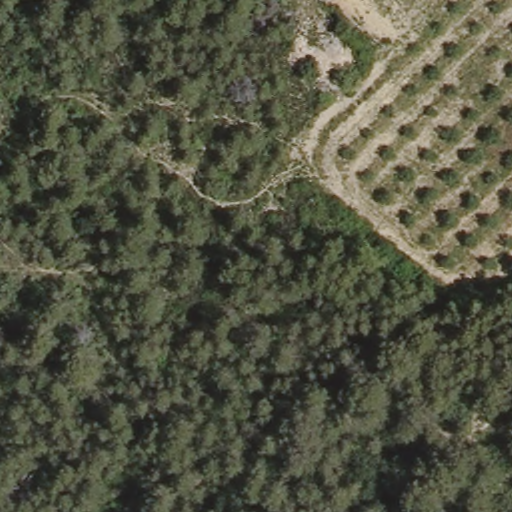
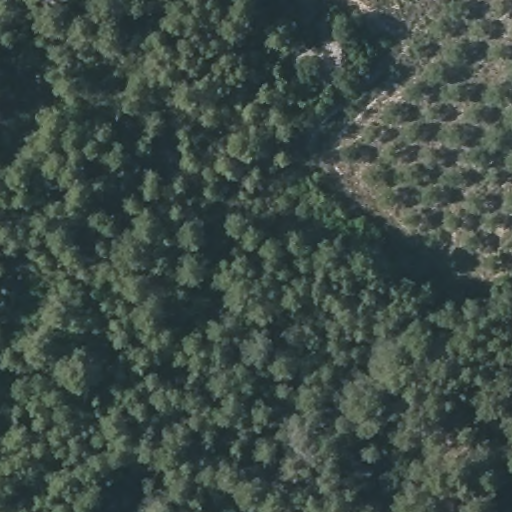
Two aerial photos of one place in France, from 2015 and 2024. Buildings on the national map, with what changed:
[]

